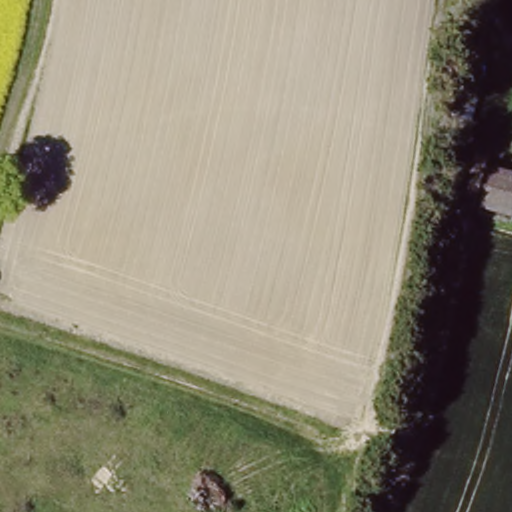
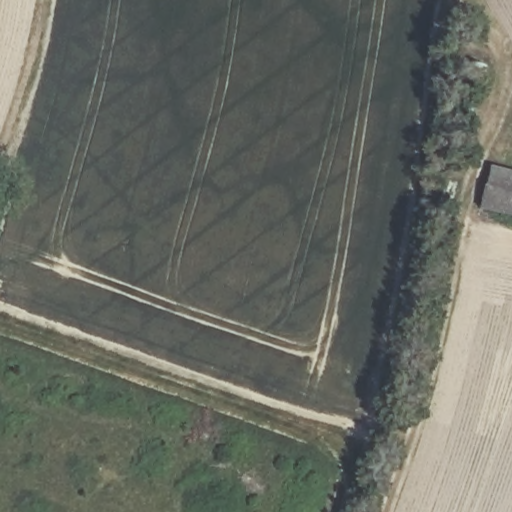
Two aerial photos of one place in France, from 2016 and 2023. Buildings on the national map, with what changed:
unchanged [(492,166),(512,172),(512,217),(481,209),(492,166)]

